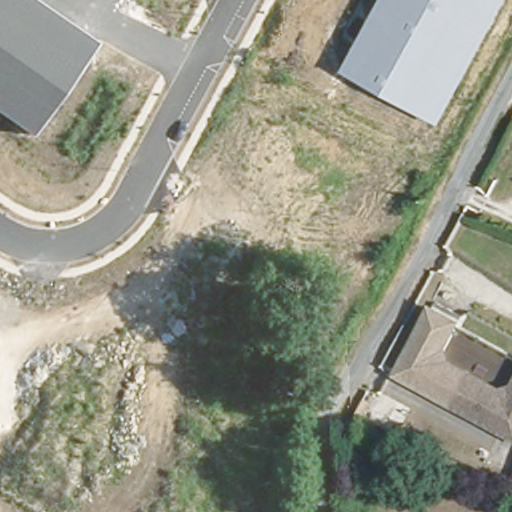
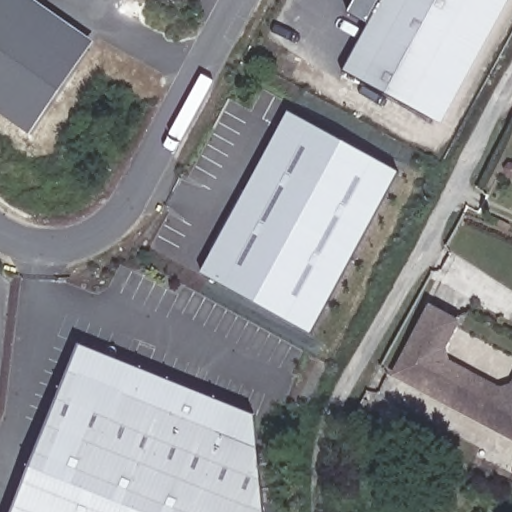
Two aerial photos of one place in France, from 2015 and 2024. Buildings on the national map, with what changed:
unchanged [(0,113),(0,0),(35,0),(96,42),(31,136),(0,113)]
unchanged [(443,125),(345,71),(384,0),(511,0),(443,125)]
new [(287,106),(396,167),(307,327),(198,267),(287,106)]
unchanged [(450,413),(390,377),(428,306),(462,324),(448,352),(451,362),(466,376),(450,413)]
new [(255,417),(264,512),(14,512),(80,346),(255,417)]
unchanged [(450,413),(466,376),(508,395),(512,388),(512,445),(450,413)]

